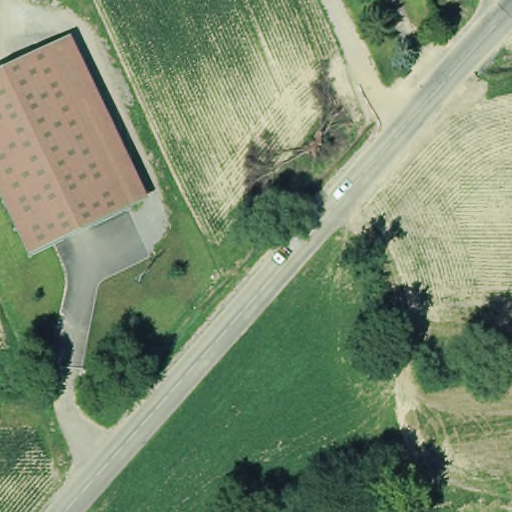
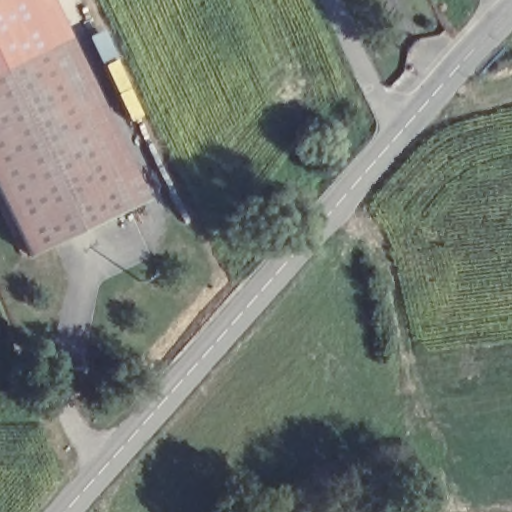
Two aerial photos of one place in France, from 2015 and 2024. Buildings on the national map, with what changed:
new [(0,71),(0,0),(57,0),(72,37),(0,71)]
unchanged [(150,203),(31,259),(0,194),(0,71),(72,37),(150,203)]

